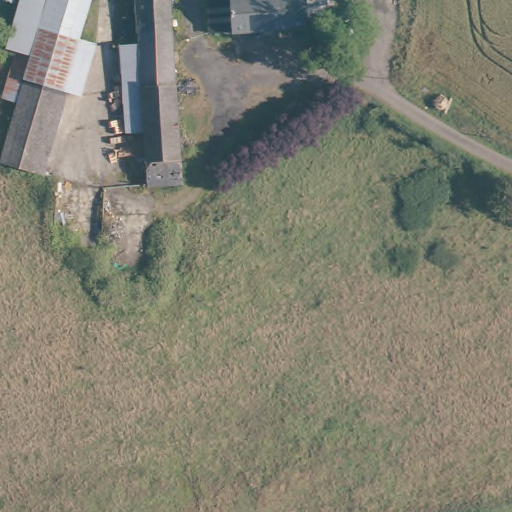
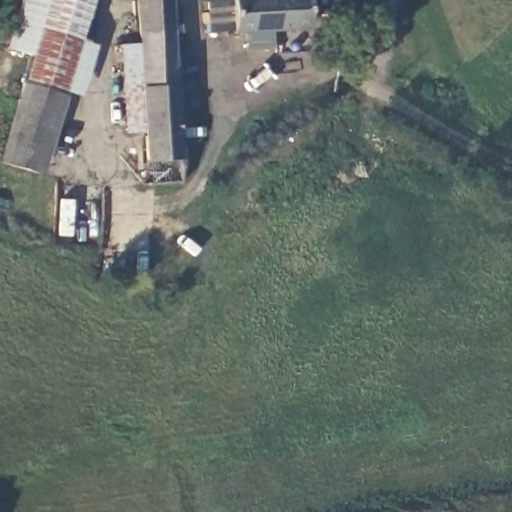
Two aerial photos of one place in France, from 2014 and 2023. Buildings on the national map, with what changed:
unchanged [(23,0),(40,0),(49,4),(51,0),(97,0),(82,41),(89,45),(72,93),(63,90),(24,75),(31,56),(6,46),(23,0)]
unchanged [(140,43),(139,0),(177,0),(183,184),(145,186),(143,128),(140,43)]
unchanged [(307,21),(308,33),(232,36),(232,34),(209,35),(208,5),(231,4),(231,0),(324,0),(324,21),(307,21)]
unchanged [(140,43),(143,128),(124,129),(122,44),(140,43)]
unchanged [(33,172),(0,161),(0,141),(24,75),(63,90),(33,172)]

